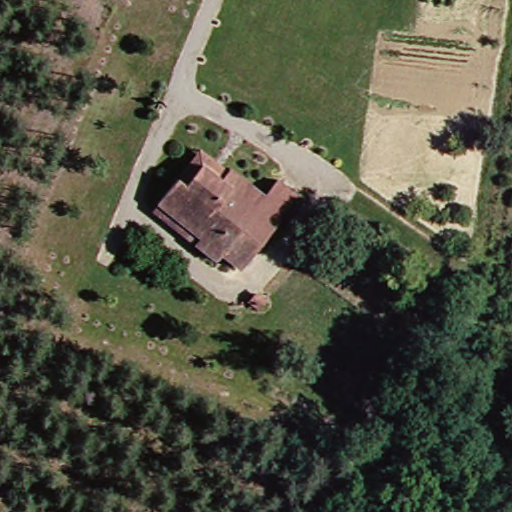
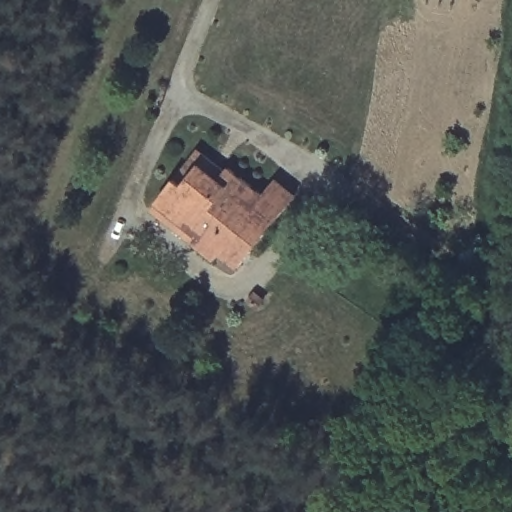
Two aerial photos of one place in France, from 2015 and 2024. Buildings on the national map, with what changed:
unchanged [(183,172),(198,154),(208,142),(230,162),(269,192),(285,174),(305,192),(246,265),(225,248),(219,254),(200,239),(157,204),(164,197),(183,172)]

